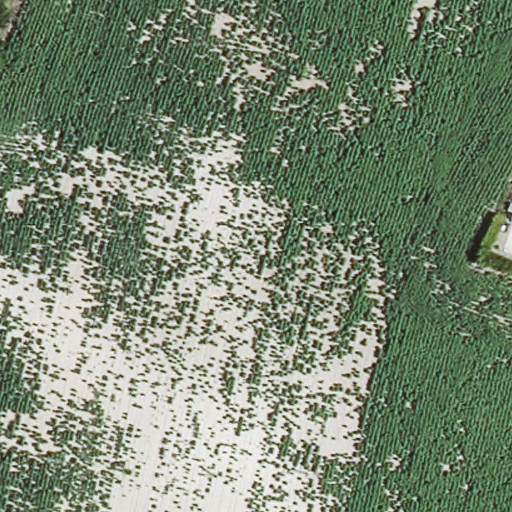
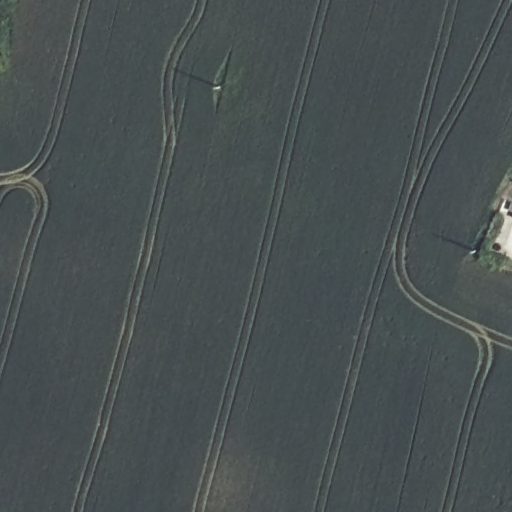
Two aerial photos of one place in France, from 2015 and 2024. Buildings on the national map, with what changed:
[]

